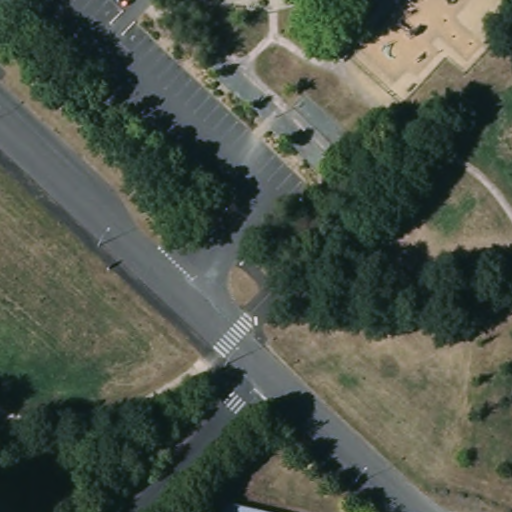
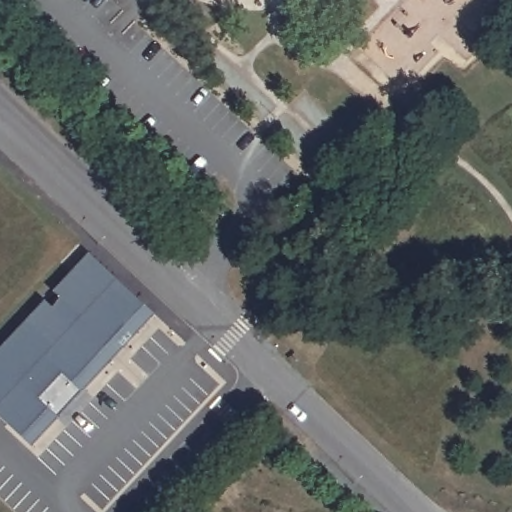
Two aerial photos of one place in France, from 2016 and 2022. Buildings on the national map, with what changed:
new [(31,446),(0,417),(0,349),(88,253),(154,313),(31,446)]
demolished [(223,501),(273,512),(221,512),(223,501)]

